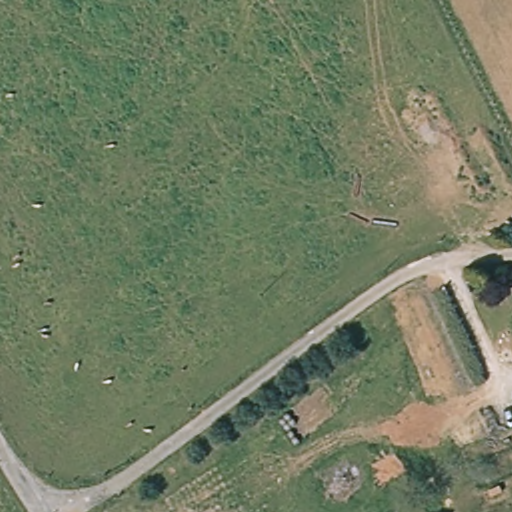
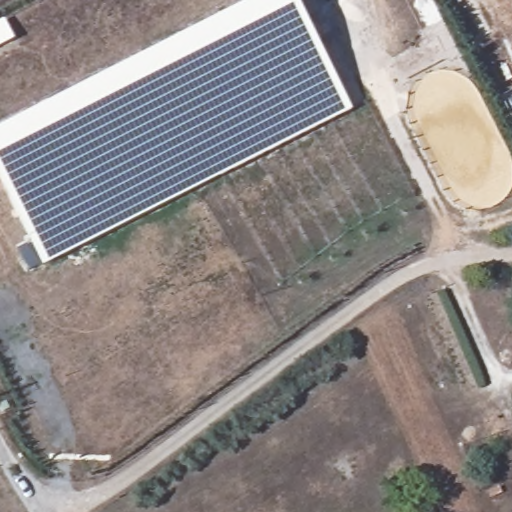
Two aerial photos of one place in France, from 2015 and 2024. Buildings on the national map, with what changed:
new [(0,180),(0,131),(260,0),(296,0),(299,4),(352,111),(44,267),(0,180)]

